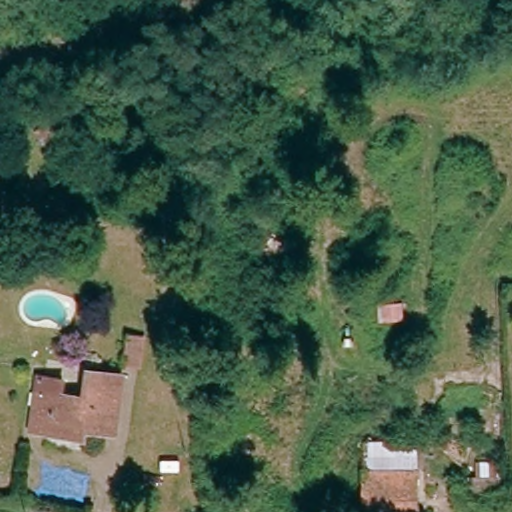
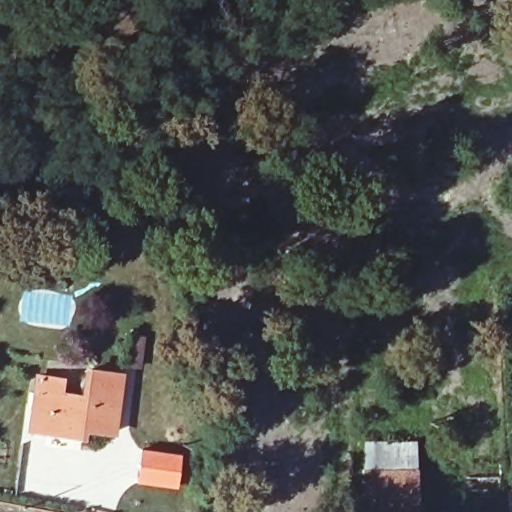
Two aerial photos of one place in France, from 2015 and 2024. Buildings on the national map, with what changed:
unchanged [(136,368),(123,366),(128,333),(141,335),(136,368)]
unchanged [(67,435),(26,428),(33,391),(81,399),(86,371),(119,377),(110,430),(78,425),(75,437),(67,435)]
new [(142,448),(180,453),(175,491),(138,486),(142,448)]
unchanged [(361,512),(362,495),(363,449),(418,448),(417,457),(414,512),(361,512)]
unchanged [(509,512),(508,492),(512,492),(512,512),(509,512)]

